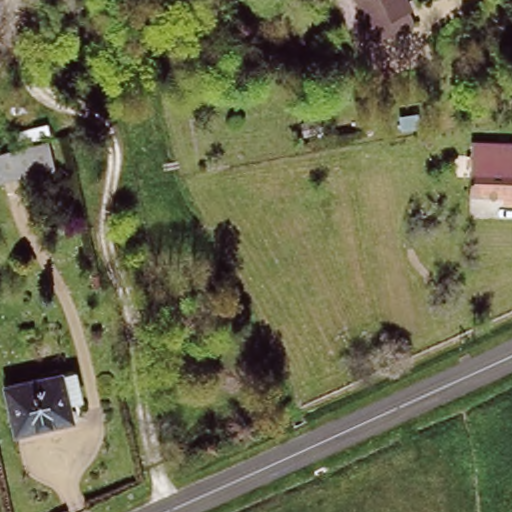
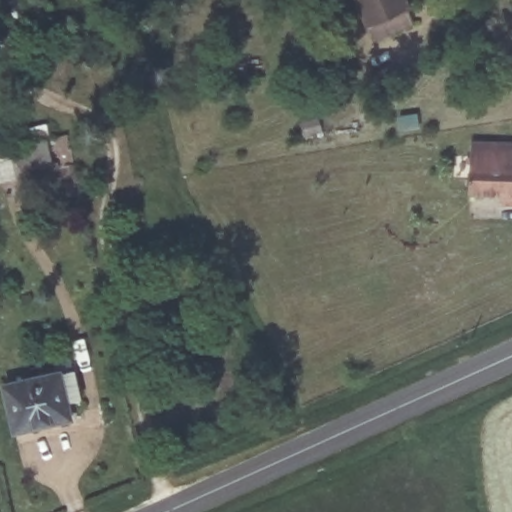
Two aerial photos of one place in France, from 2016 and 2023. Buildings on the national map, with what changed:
unchanged [(377,39),(360,0),(405,0),(415,22),(377,39)]
unchanged [(0,182),(0,151),(53,142),(58,168),(0,182)]
unchanged [(472,195),(474,144),(512,146),(512,198),(472,195)]
unchanged [(78,413),(11,430),(0,389),(0,387),(66,369),(78,413)]

